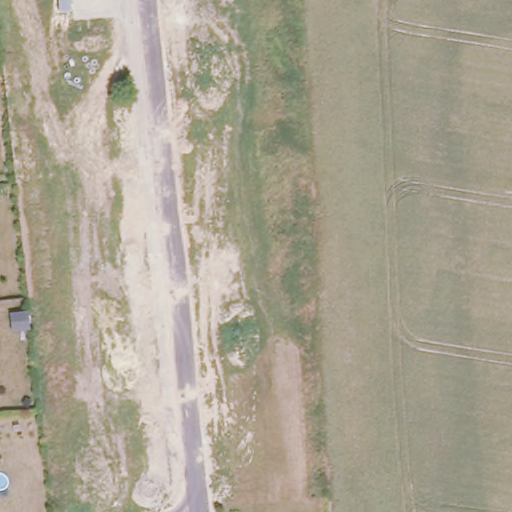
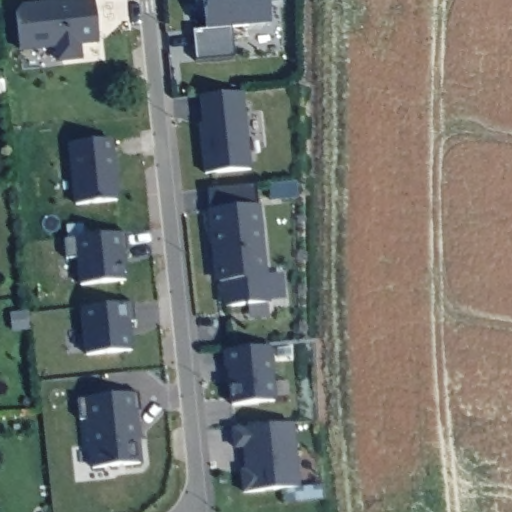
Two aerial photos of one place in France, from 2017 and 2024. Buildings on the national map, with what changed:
new [(79,36),(80,51),(57,54),(56,38),(20,42),(16,6),(20,0),(95,0),(98,35),(79,36)]
new [(232,23),(235,54),(196,58),(193,27),(206,25),(204,0),(268,0),(270,20),(232,23)]
new [(243,89),(252,166),(207,170),(198,94),(243,89)]
new [(112,136),(117,197),(77,201),(70,140),(112,136)]
new [(257,181),(269,299),(225,304),(223,277),(217,278),(208,186),(257,181)]
new [(127,229),(128,248),(122,249),(126,278),(82,282),(78,255),(67,256),(65,236),(127,229)]
new [(134,299),(136,318),(129,319),(132,347),(87,352),(82,304),(134,299)]
new [(270,343),(275,397),(233,401),(231,376),(233,375),(232,363),(227,363),(225,347),(270,343)]
new [(83,399),(137,394),(140,411),(136,412),(141,464),(90,469),(82,420),(79,421),(77,399),(83,399)]
new [(293,419),(300,483),(245,489),(243,467),(250,467),(248,442),(236,444),(234,425),(293,419)]

